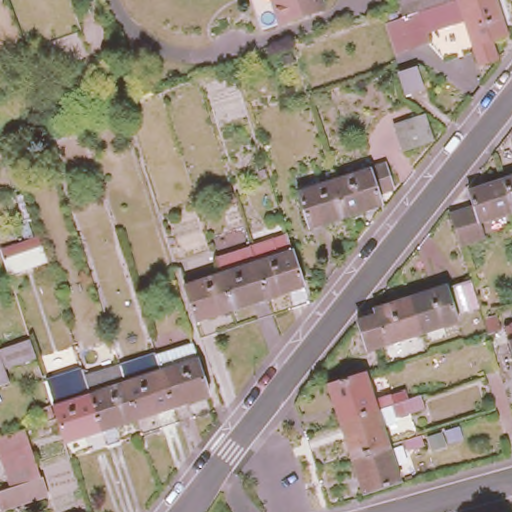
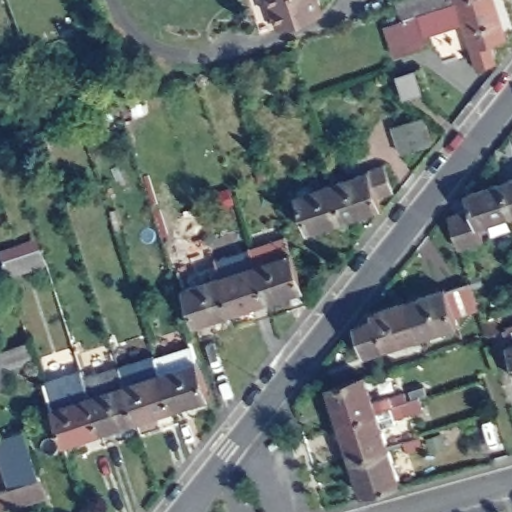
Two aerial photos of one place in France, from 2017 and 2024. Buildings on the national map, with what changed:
unchanged [(326,5),(285,19),(278,0),(325,0),(326,5)]
unchanged [(476,51),(464,15),(426,29),(432,47),(417,52),(406,22),(402,24),(400,15),(397,8),(396,4),(407,0),(495,0),(508,40),(494,45),(500,63),(482,70),(476,51)]
unchanged [(423,90),(406,96),(399,76),(416,70),(423,90)]
unchanged [(406,157),(397,131),(427,120),(437,146),(406,157)]
unchanged [(391,162),(399,183),(381,190),(386,202),(350,215),(338,181),(375,168),(391,162)]
unchanged [(510,179),(512,178),(512,186),(510,179)]
unchanged [(465,245),(455,212),(479,204),(475,190),(510,179),(512,186),(512,212),(485,221),(490,236),(465,245)]
unchanged [(303,192),(311,190),(309,184),(315,182),(318,187),(338,181),(350,215),(315,227),(303,192)]
unchanged [(250,245),(286,233),(304,287),(267,300),(250,245)]
unchanged [(267,300),(232,312),(220,276),(214,257),(250,245),(267,300)]
unchanged [(6,264),(43,252),(46,260),(49,267),(11,280),(6,264)]
unchanged [(184,289),(220,276),(232,312),(195,324),(184,289)]
unchanged [(409,301),(446,287),(446,290),(471,282),(478,306),(455,315),(457,322),(420,334),(409,301)]
unchanged [(359,326),(368,315),(374,312),(409,301),(420,334),(385,345),(367,351),(359,326)]
unchanged [(507,332),(496,336),(491,322),(502,318),(507,332)]
unchanged [(12,378),(0,382),(0,344),(0,345),(12,378)]
unchanged [(154,356),(192,345),(197,359),(209,395),(171,407),(136,418),(100,431),(64,442),(56,420),(51,407),(43,381),(80,368),(82,377),(118,365),(125,383),(160,372),(154,356)]
unchanged [(353,455),(341,419),(329,382),(366,371),(375,400),(407,387),(411,396),(421,393),(426,404),(397,413),(393,402),(378,407),(390,442),(353,455)]
unchanged [(44,472),(15,482),(0,436),(28,427),(44,472)]
unchanged [(420,437),(423,447),(408,452),(405,442),(420,437)]
unchanged [(402,478),(365,491),(353,455),(390,442),(402,478)]
unchanged [(44,472),(50,490),(0,507),(0,487),(15,482),(44,472)]

